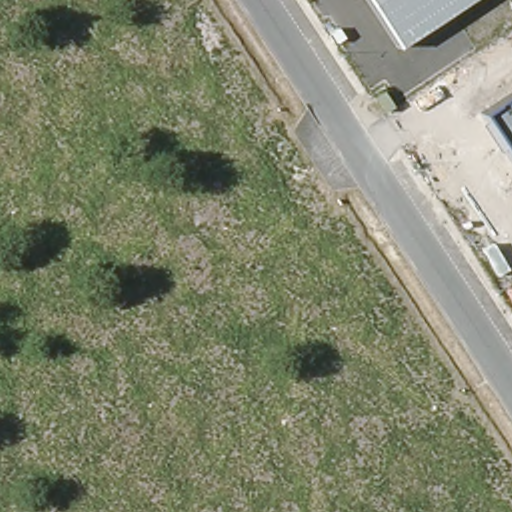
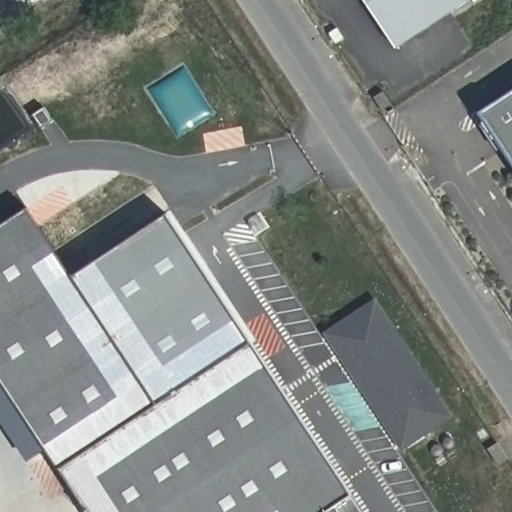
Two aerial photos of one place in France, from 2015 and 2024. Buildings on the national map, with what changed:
unchanged [(368,0),(471,0),(399,47),(368,0)]
unchanged [(487,111),(512,95),(512,152),(487,111)]
new [(156,406),(61,470),(0,377),(0,228),(29,209),(156,406)]
new [(169,215),(252,343),(156,406),(72,277),(169,215)]
new [(403,453),(325,333),(376,298),(454,417),(403,453)]
new [(156,406),(253,343),(353,495),(327,512),(89,512),(61,470),(156,406)]

